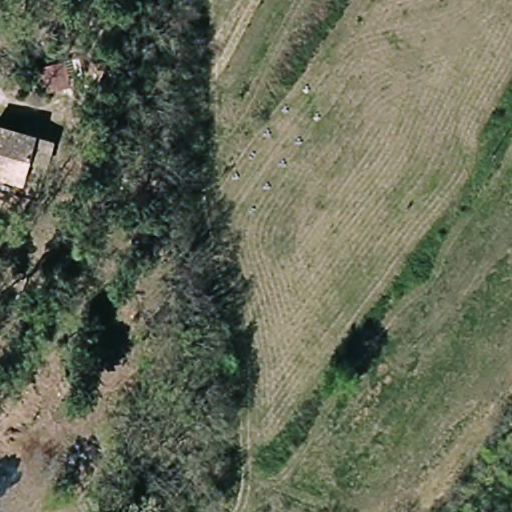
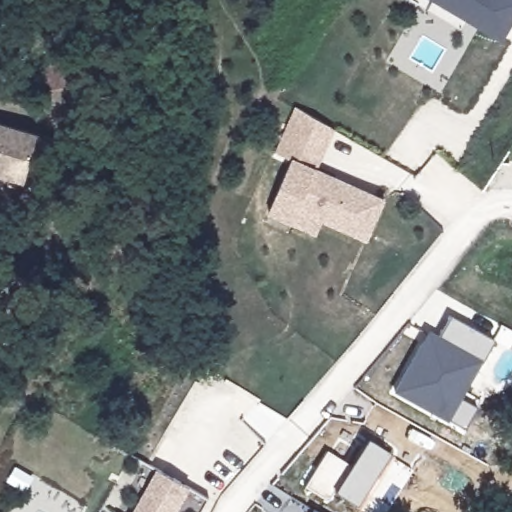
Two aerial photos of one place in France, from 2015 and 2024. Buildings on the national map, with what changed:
new [(430,0),(512,0),(512,27),(502,43),(430,0)]
new [(292,224),(269,215),(293,159),(275,152),(295,108),(336,131),(317,169),(386,199),(367,241),(322,223),(316,237),(292,224)]
unchanged [(22,186),(0,178),(0,126),(38,141),(22,186)]
new [(449,318),(492,342),(460,399),(475,408),(461,432),(391,393),(426,332),(437,338),(449,318)]
new [(156,469),(191,489),(177,512),(132,512),(156,469)]
new [(314,512),(309,512),(310,510),(314,512)]

